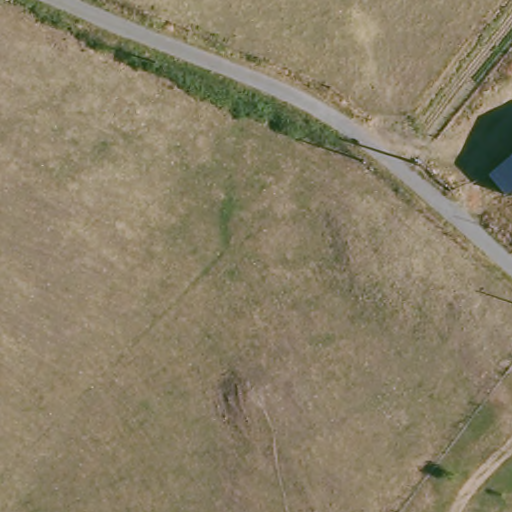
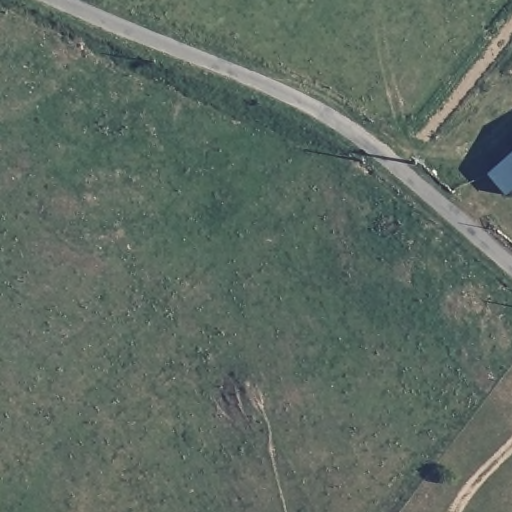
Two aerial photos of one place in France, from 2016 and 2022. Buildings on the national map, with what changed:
unchanged [(491,169),(512,153),(512,188),(508,191),(491,169)]

